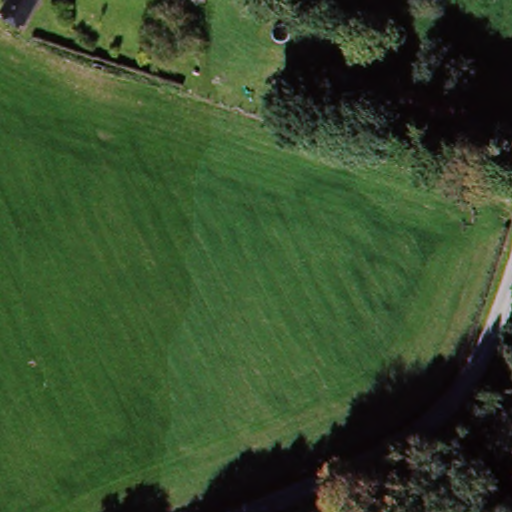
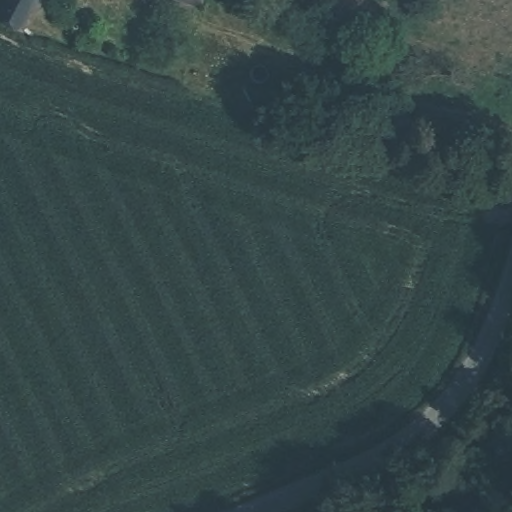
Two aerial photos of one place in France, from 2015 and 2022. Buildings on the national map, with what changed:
unchanged [(1,0),(33,0),(12,31),(0,22),(0,2),(1,0)]
unchanged [(185,0),(196,0),(195,3),(185,0)]

